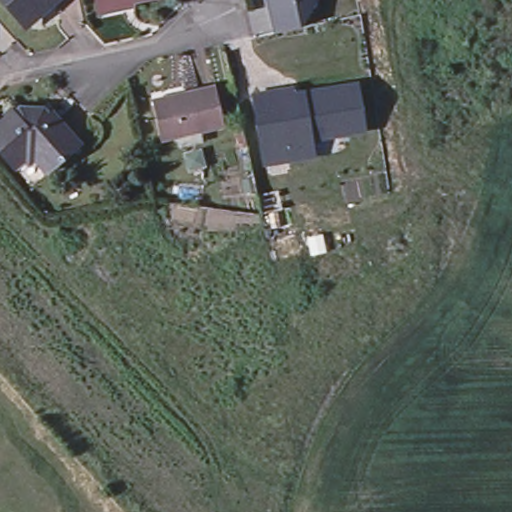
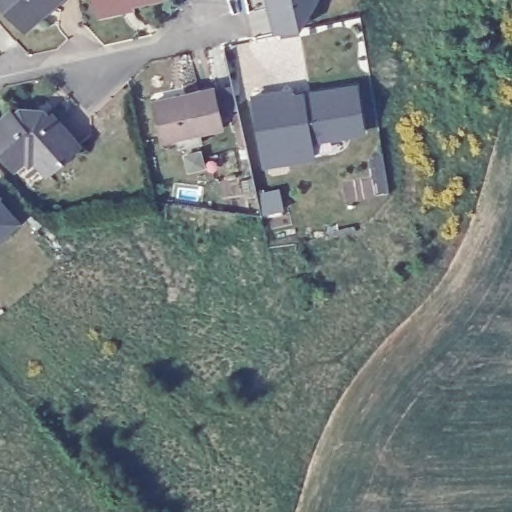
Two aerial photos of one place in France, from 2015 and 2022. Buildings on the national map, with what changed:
unchanged [(15,9),(7,0),(35,0),(20,15),(15,9)]
unchanged [(97,9),(95,0),(120,0),(122,5),(97,9)]
unchanged [(296,31),(272,36),(267,14),(266,8),(271,7),(269,0),(314,0),(309,8),(296,31)]
unchanged [(254,96),(295,89),(298,93),(358,85),(365,134),(313,141),(315,159),(265,168),(254,96)]
unchanged [(217,90),(225,128),(164,143),(155,105),(217,90)]
unchanged [(31,155),(22,144),(17,150),(12,145),(0,156),(0,101),(4,102),(7,96),(22,98),(22,105),(32,106),(38,101),(52,117),(65,133),(35,161),(31,155)]
new [(0,239),(0,198),(21,221),(0,239)]

